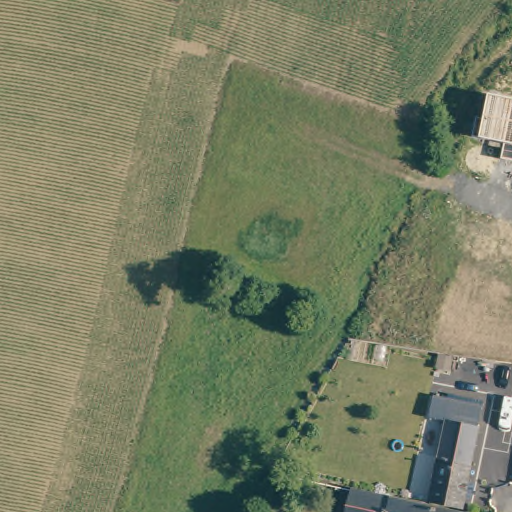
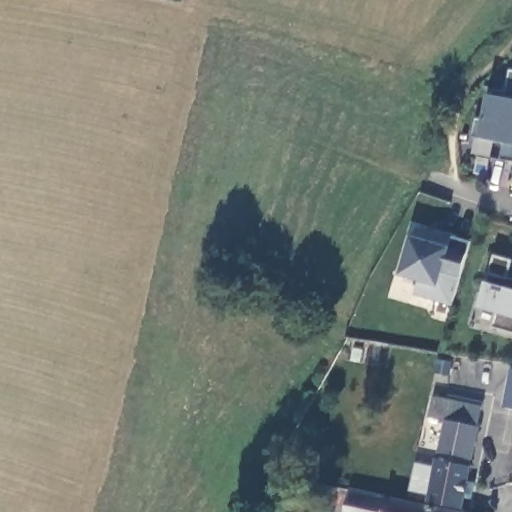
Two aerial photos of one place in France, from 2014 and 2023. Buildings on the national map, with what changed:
unchanged [(512,161),(500,159),(502,142),(479,139),(472,136),(475,116),(483,118),(488,95),(512,100),(512,161)]
new [(468,252),(461,277),(452,306),(414,295),(419,281),(400,275),(412,236),(415,237),(416,227),(452,238),(452,236),(470,241),(468,252)]
new [(512,277),(512,332),(493,327),(498,313),(478,308),(487,281),(495,254),(512,260),(512,265),(509,276),(512,277)]
new [(512,369),(512,410),(501,408),(508,368),(512,369)]
unchanged [(443,457),(442,457),(451,418),(433,415),(438,394),(486,405),(474,463),(443,457)]
unchanged [(442,457),(443,457),(474,463),(475,464),(466,506),(434,500),(442,457)]
unchanged [(355,496),(357,488),(433,505),(465,512),(351,512),(355,496)]

